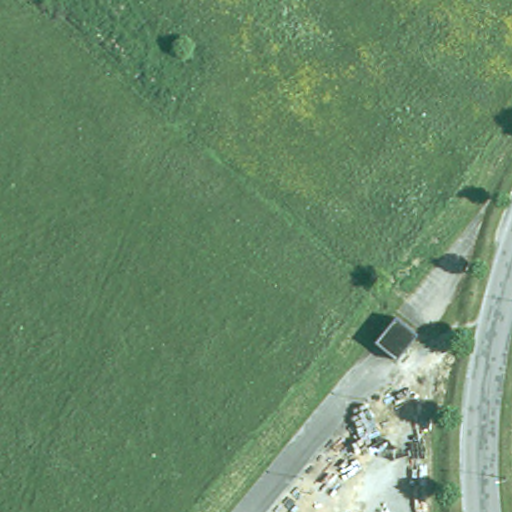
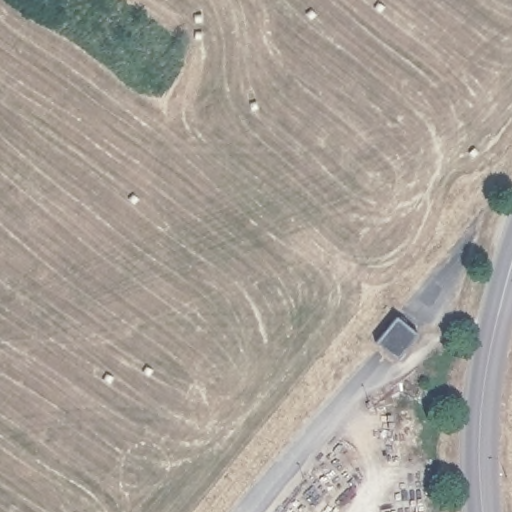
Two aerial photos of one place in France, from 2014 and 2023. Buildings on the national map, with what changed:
unchanged [(375,341),(395,315),(417,333),(396,359),(375,341)]

